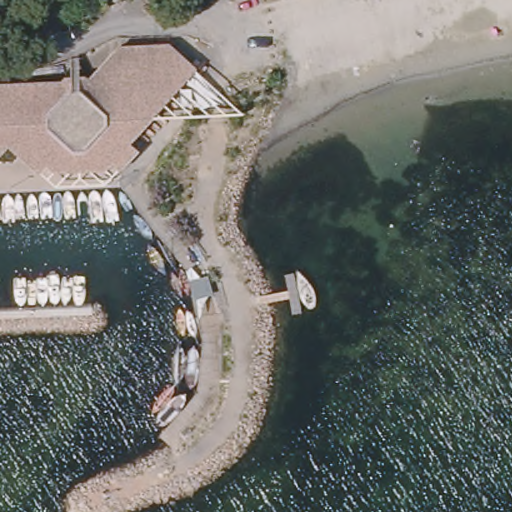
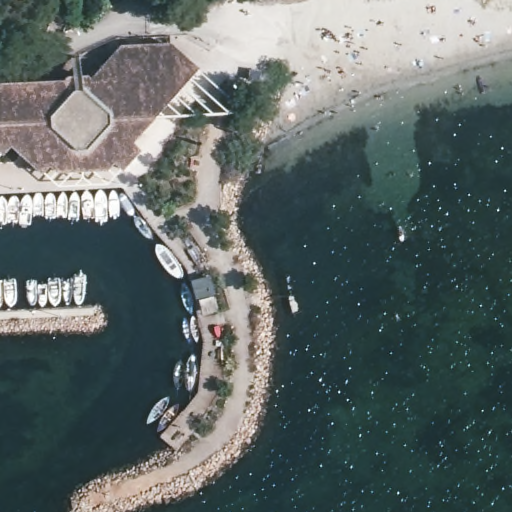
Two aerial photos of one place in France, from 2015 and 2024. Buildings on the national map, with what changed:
unchanged [(191,68),(127,140),(134,148),(118,166),(110,160),(102,169),(56,170),(45,164),(37,169),(7,144),(0,151),(0,85),(60,84),(65,79),(80,76),(87,79),(114,49),(166,44),(191,68)]

